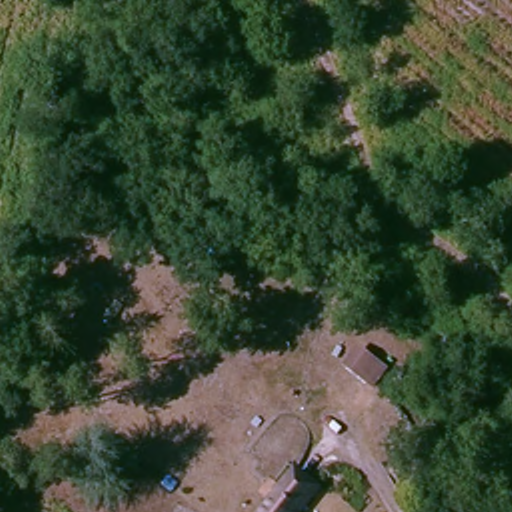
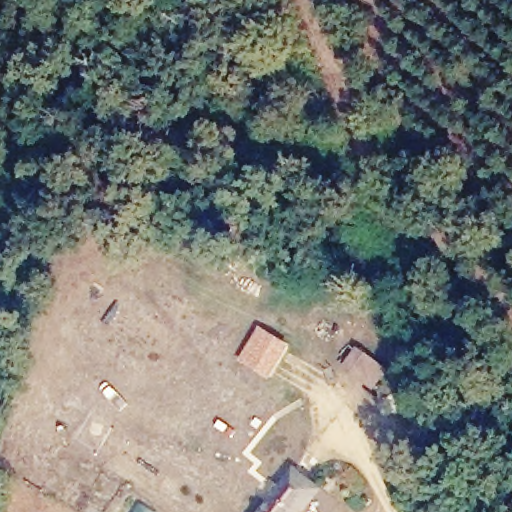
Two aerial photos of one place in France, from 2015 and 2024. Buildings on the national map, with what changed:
new [(260,326),(291,345),(269,381),(238,361),(260,326)]
unchanged [(254,512),(291,465),(328,494),(314,512),(254,512)]

